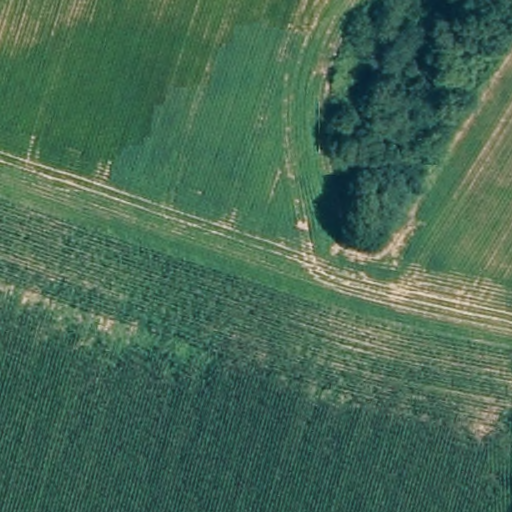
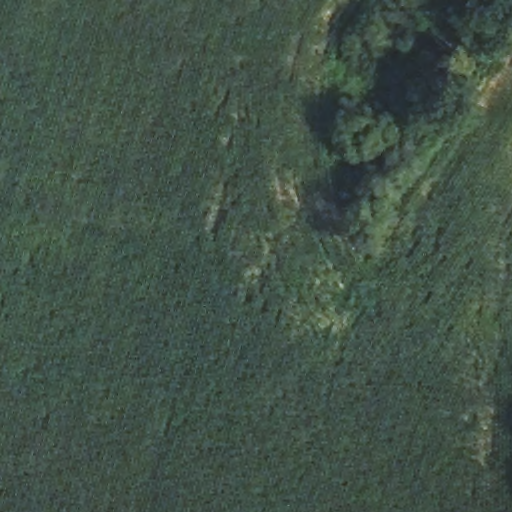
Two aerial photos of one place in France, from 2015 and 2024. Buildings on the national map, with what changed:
[]

